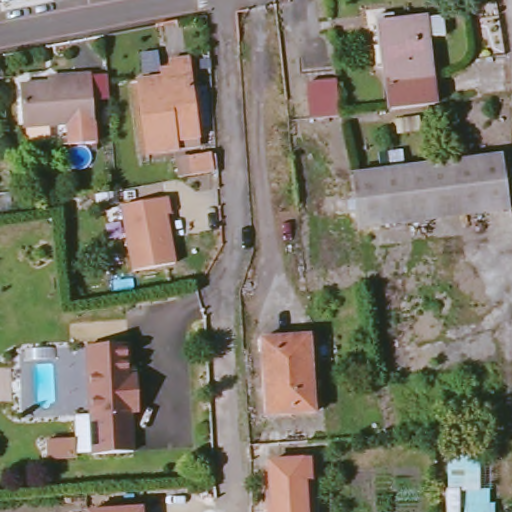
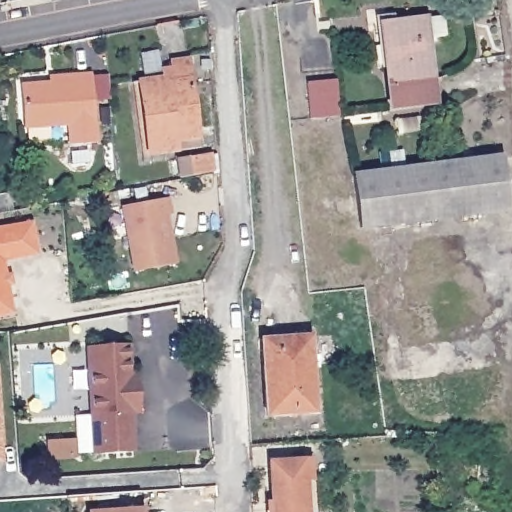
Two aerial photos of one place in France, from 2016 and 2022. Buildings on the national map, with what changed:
unchanged [(464,0),(474,0),(465,2),(464,0)]
unchanged [(378,24),(420,17),(420,20),(432,18),(438,22),(440,37),(422,40),(430,106),(389,110),(378,24)]
unchanged [(177,151),(150,155),(140,82),(164,80),(162,71),(174,69),(172,64),(187,61),(198,138),(200,147),(177,151)]
unchanged [(50,79),(75,77),(90,77),(95,144),(70,146),(68,130),(75,130),(74,126),(24,130),(21,87),(50,85),(50,79)]
unchanged [(341,107),(342,115),(310,119),(307,84),(337,80),(341,107)]
unchanged [(192,161),(209,157),(211,172),(195,174),(192,161)]
unchanged [(511,210),(362,229),(355,177),(502,158),(511,210)]
new [(13,211),(0,213),(0,193),(10,192),(13,211)]
unchanged [(169,198),(171,214),(167,215),(175,264),(134,271),(122,206),(169,198)]
new [(6,274),(10,273),(12,285),(7,286),(13,315),(0,317),(0,227),(32,222),(37,255),(4,262),(6,274)]
unchanged [(264,341),(311,338),(315,413),(268,416),(264,341)]
unchanged [(131,411),(133,451),(94,453),(93,452),(77,453),(77,454),(47,456),(46,440),(76,437),(75,417),(91,416),(87,346),(129,343),(130,376),(137,375),(138,386),(140,411),(131,411)]
new [(0,410),(5,462),(0,463),(0,410)]
unchanged [(270,462),(310,460),(312,480),(307,480),(308,512),(273,512),(270,462)]

